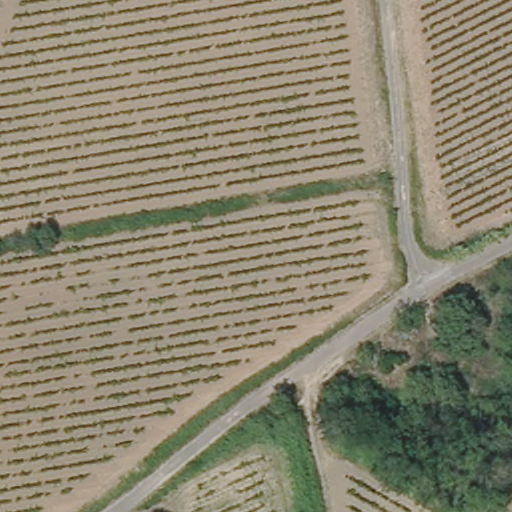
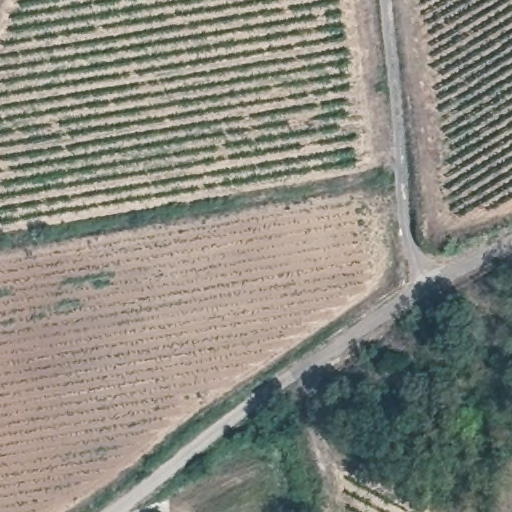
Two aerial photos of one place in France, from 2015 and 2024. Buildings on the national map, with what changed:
unchanged [(390,410),(413,408),(414,420),(392,425),(390,410)]

